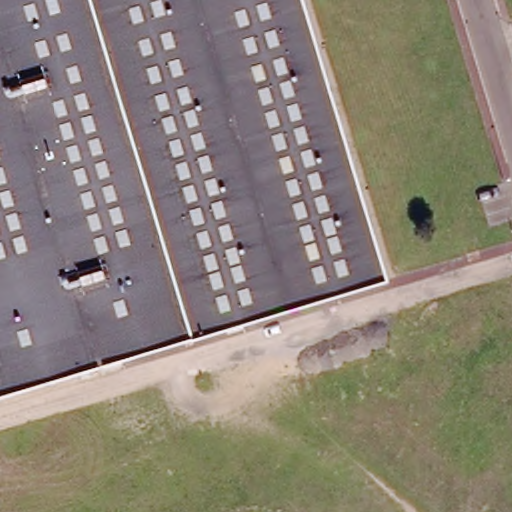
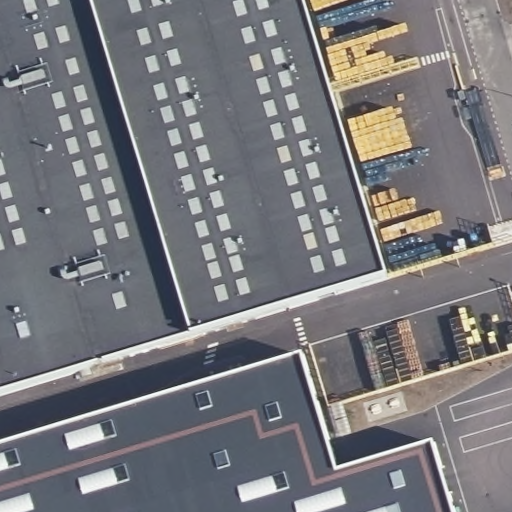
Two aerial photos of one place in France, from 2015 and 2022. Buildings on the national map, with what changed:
unchanged [(0,0),(299,0),(382,280),(0,395),(0,0)]
new [(337,474),(343,471),(345,478),(356,512),(0,512),(0,447),(302,356),(337,474)]
new [(441,449),(460,512),(356,512),(345,478),(441,449)]

